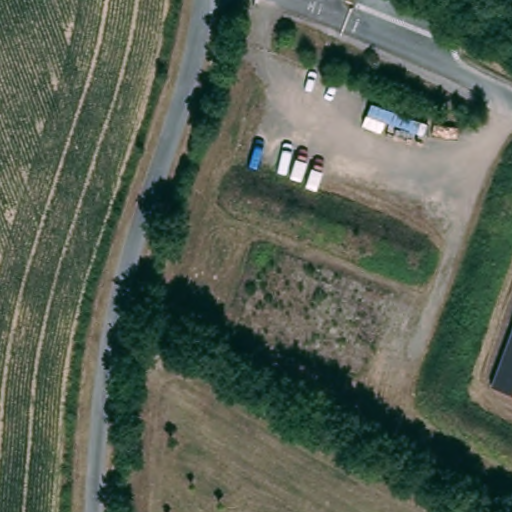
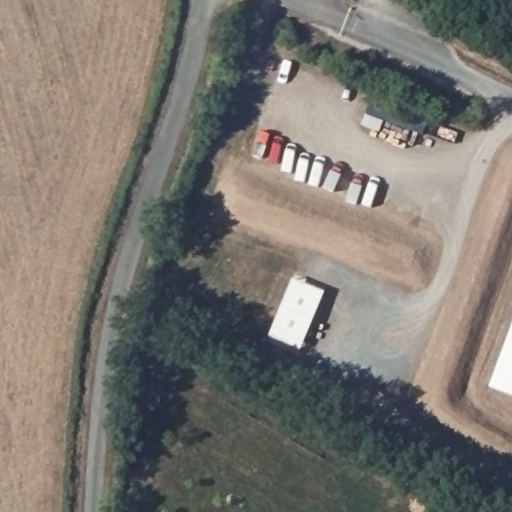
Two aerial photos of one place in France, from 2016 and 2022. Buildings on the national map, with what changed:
new [(286,293),(291,281),(321,293),(316,306),(303,337),(297,350),(268,337),(273,325),(286,293)]
unchanged [(491,391),(512,335),(512,398),(491,391)]

